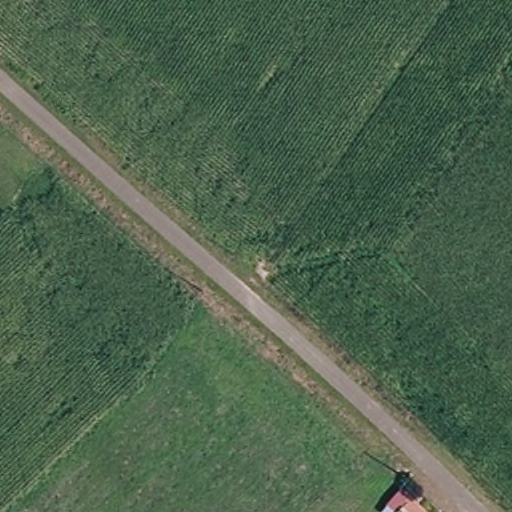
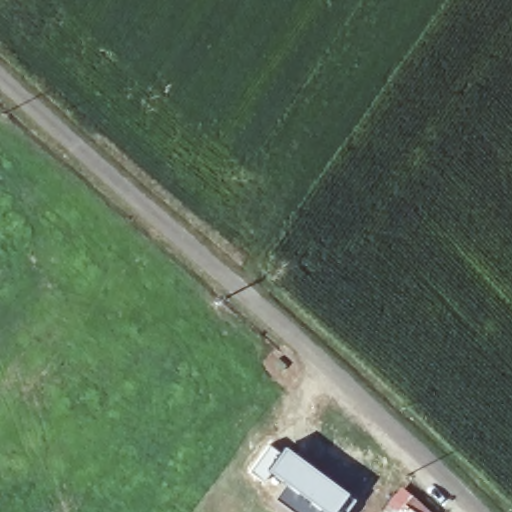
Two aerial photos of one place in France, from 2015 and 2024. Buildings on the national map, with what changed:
new [(268,444),(280,452),(283,446),(356,499),(347,512),(290,512),(272,498),(282,484),(268,474),(263,481),(250,469),(268,444)]
unchanged [(406,488),(436,512),(386,512),(406,488)]

